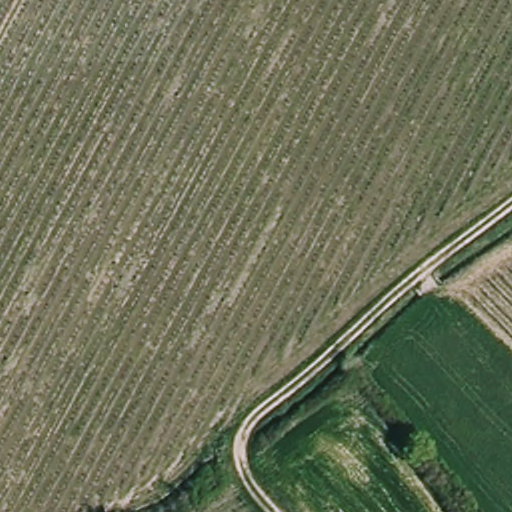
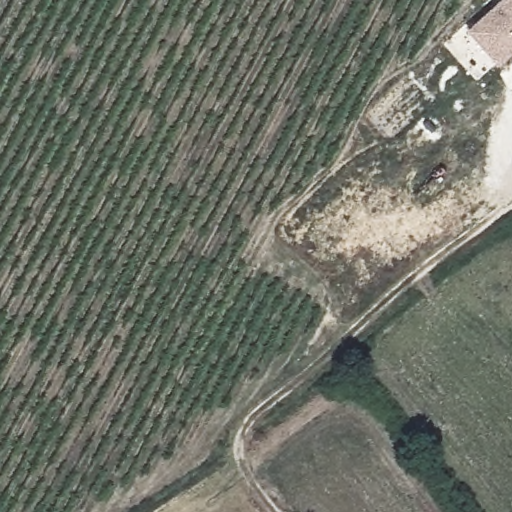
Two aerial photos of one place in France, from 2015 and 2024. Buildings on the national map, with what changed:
new [(498,0),(512,0),(512,52),(496,66),(464,30),(498,0)]

